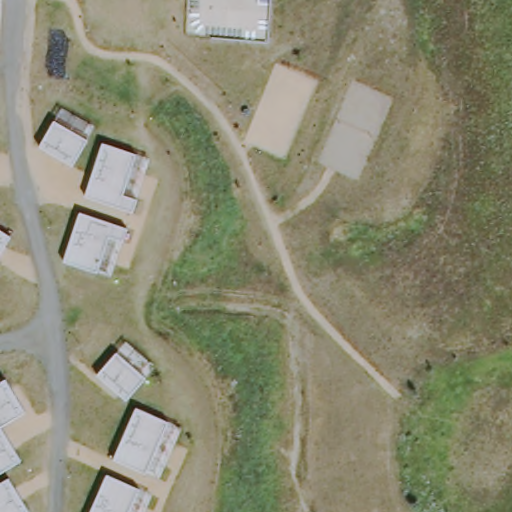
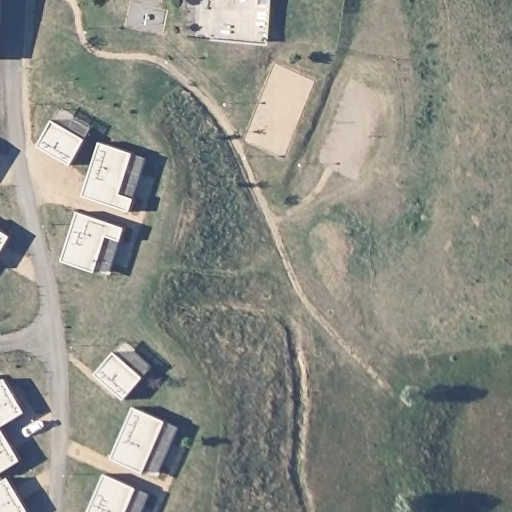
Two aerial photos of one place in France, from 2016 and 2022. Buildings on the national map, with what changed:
unchanged [(86,139),(71,166),(37,147),(52,119),(86,139)]
unchanged [(135,153),(122,192),(135,197),(131,211),(82,195),(100,142),(135,153)]
unchanged [(127,227),(122,241),(107,236),(95,272),(60,261),(77,211),(127,227)]
unchanged [(0,252),(0,231),(10,237),(0,252)]
unchanged [(145,377),(124,401),(95,375),(115,351),(145,377)]
unchanged [(0,427),(20,460),(0,473),(0,381),(4,379),(25,413),(0,427)]
unchanged [(167,420),(145,473),(111,458),(135,406),(167,420)]
unchanged [(137,487),(127,512),(88,512),(105,473),(137,487)]
unchanged [(27,512),(0,512),(0,482),(7,478),(28,511),(27,512)]

